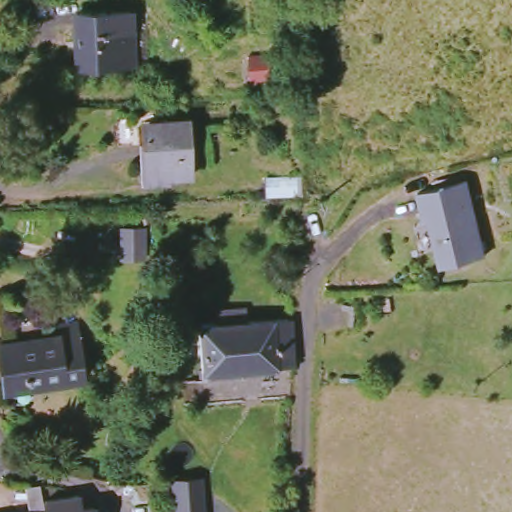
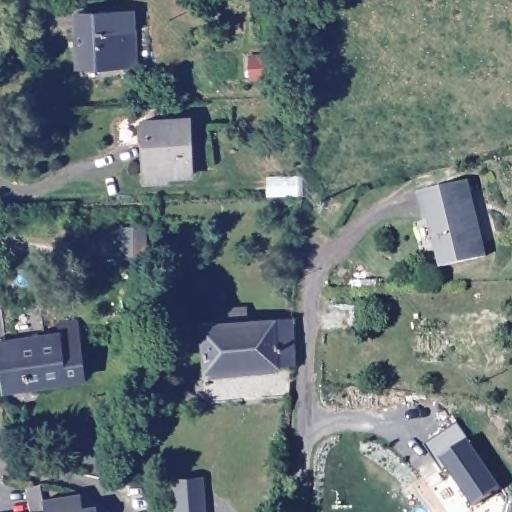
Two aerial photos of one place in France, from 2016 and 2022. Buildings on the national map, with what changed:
unchanged [(126,66),(85,70),(78,14),(120,10),(126,66)]
unchanged [(192,177),(150,177),(147,124),(190,122),(192,177)]
unchanged [(266,175),(300,175),(301,196),(266,196),(266,175)]
unchanged [(489,257),(446,267),(435,221),(430,222),(428,214),(423,192),(471,182),(489,257)]
new [(125,227),(147,227),(147,257),(125,257),(125,227)]
unchanged [(295,365),(206,376),(202,331),(221,328),(220,316),(247,312),(249,325),(293,320),(295,365)]
unchanged [(0,342),(60,335),(78,332),(85,380),(65,382),(3,391),(0,364),(0,342)]
new [(467,438),(502,487),(473,506),(448,467),(442,470),(425,444),(456,422),(467,438)]
unchanged [(204,478),(206,512),(175,512),(172,480),(204,478)]
unchanged [(42,485),(46,512),(35,512),(31,482),(42,485)]
unchanged [(82,509),(97,507),(98,512),(50,512),(48,498),(80,495),(82,509)]

